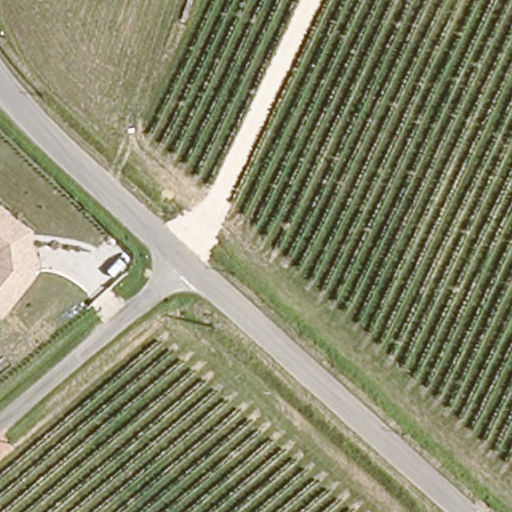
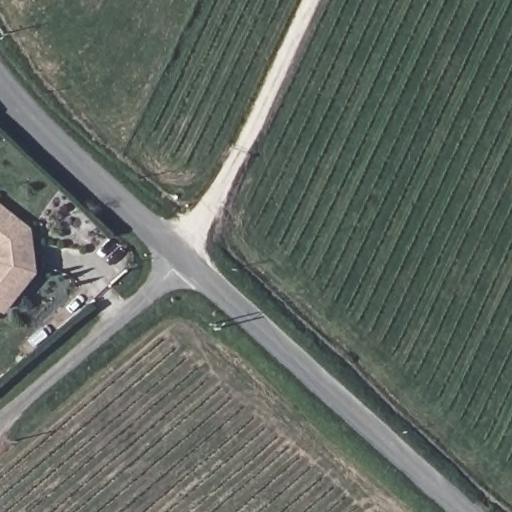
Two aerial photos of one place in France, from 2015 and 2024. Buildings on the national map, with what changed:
unchanged [(34,231),(35,276),(2,313),(0,312),(0,201),(34,231)]

